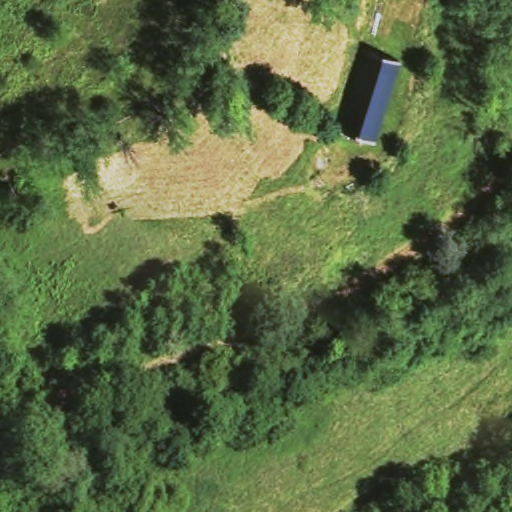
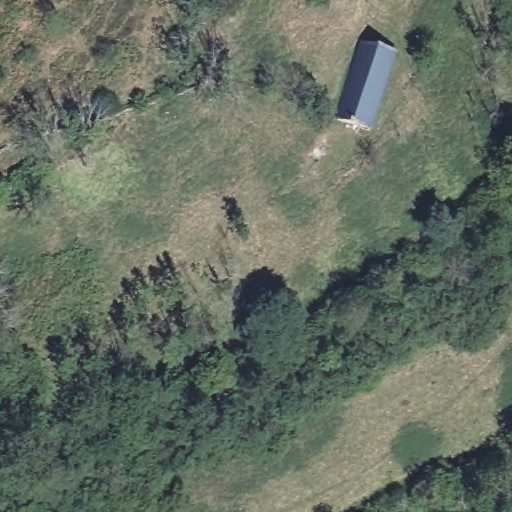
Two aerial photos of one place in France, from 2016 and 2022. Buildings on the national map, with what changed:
unchanged [(369,134),(338,122),(359,49),(393,57),(369,134)]

